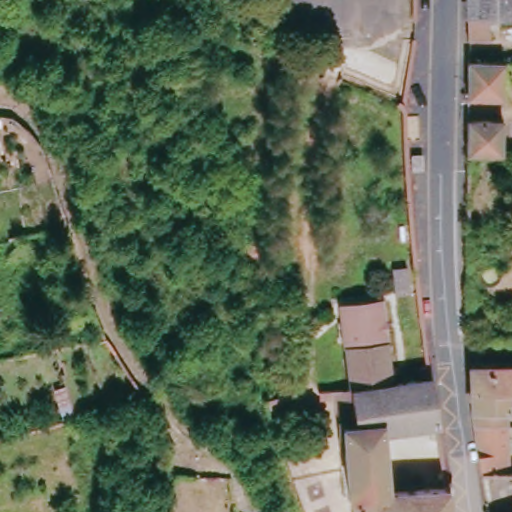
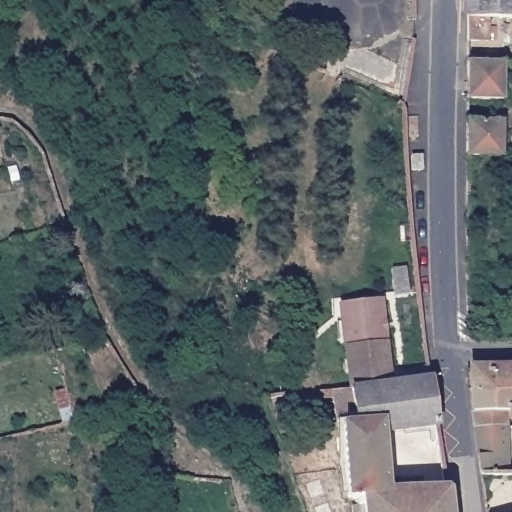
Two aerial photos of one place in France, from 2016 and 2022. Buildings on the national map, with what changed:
unchanged [(480,43),(461,41),(462,0),(512,0),(512,20),(481,19),(480,43)]
unchanged [(496,64),(496,101),(461,100),(461,63),(496,64)]
unchanged [(496,120),(495,161),(461,160),(461,121),(496,120)]
unchanged [(502,120),(512,120),(512,162),(502,161),(502,120)]
unchanged [(423,162),(424,178),(413,178),(413,163),(423,162)]
unchanged [(401,268),(403,294),(389,295),(387,269),(401,268)]
unchanged [(333,304),(374,302),(378,332),(380,344),(338,347),(333,304)]
unchanged [(374,432),(380,491),(441,488),(445,512),(358,512),(356,501),(344,501),(334,423),(330,390),(342,388),(340,375),(338,347),(380,344),(385,383),(414,380),(412,366),(423,366),(432,427),(374,432)]
unchanged [(468,410),(466,389),(463,365),(512,365),(512,398),(506,399),(506,408),(512,408),(512,418),(505,418),(505,425),(507,471),(477,472),(471,426),(468,410)]
unchanged [(287,386),(313,383),(314,393),(288,396),(287,386)]
unchanged [(511,486),(512,485),(512,500),(511,500),(511,486)]

